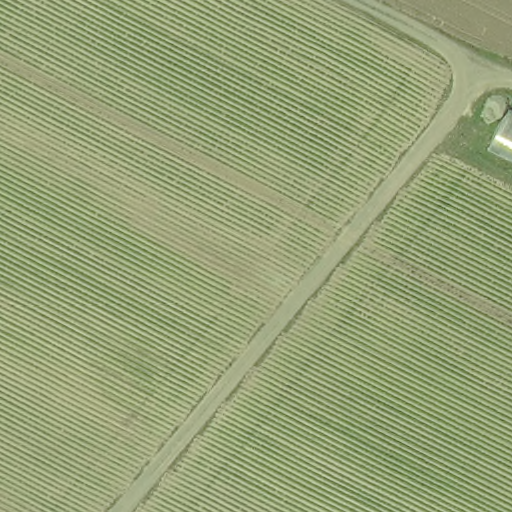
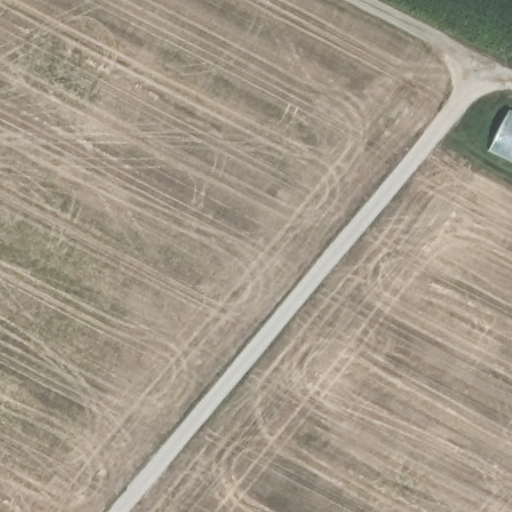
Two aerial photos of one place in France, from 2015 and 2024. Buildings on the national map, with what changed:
unchanged [(506,112),(512,115),(512,165),(486,153),(506,112)]

